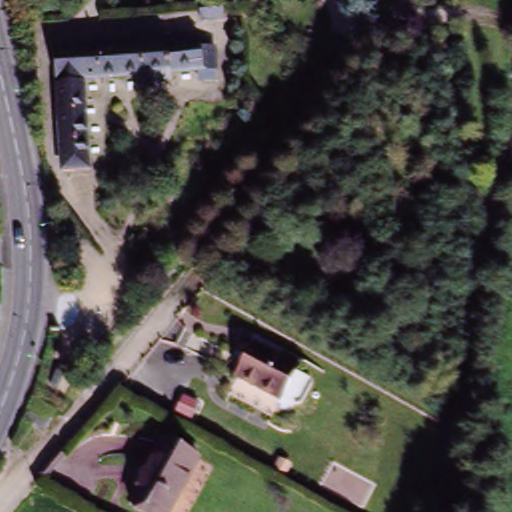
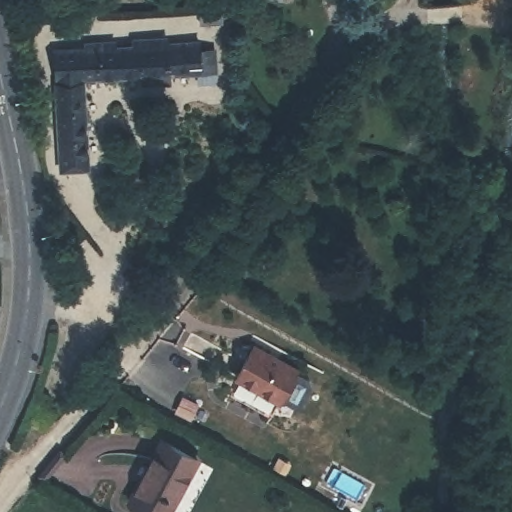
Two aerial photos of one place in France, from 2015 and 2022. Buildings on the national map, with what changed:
unchanged [(51,83),(50,54),(81,51),(80,42),(110,41),(110,50),(129,48),(128,40),(163,37),(164,46),(194,44),(194,51),(208,50),(208,58),(209,73),(196,73),(162,75),(163,82),(136,84),(136,77),(76,81),(78,88),(83,167),(58,170),(52,89),(51,83)]
unchanged [(288,359),(263,407),(218,383),(245,336),(288,359)]
unchanged [(45,402),(48,405),(39,421),(24,412),(35,391),(45,402)]
unchanged [(130,505),(163,441),(199,461),(172,512),(144,512),(130,505)]

